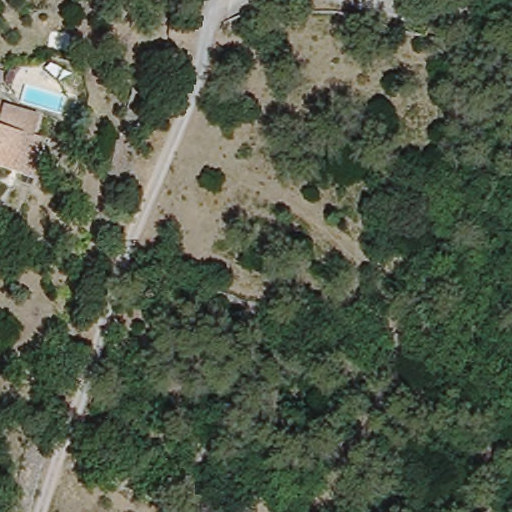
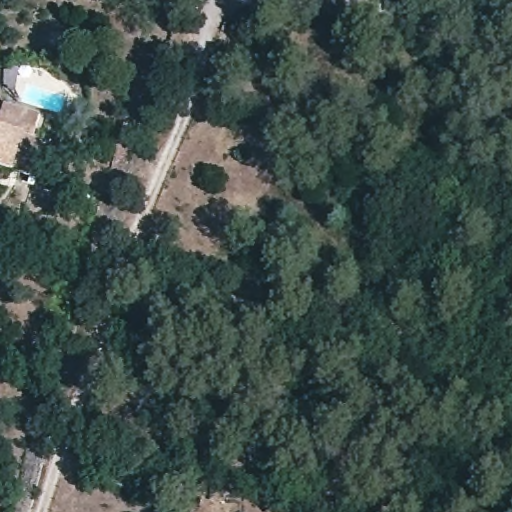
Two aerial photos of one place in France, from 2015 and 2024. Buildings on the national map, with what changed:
unchanged [(13,177),(0,173),(0,105),(3,110),(40,120),(35,143),(24,140),(20,154),(40,160),(32,182),(13,177)]

